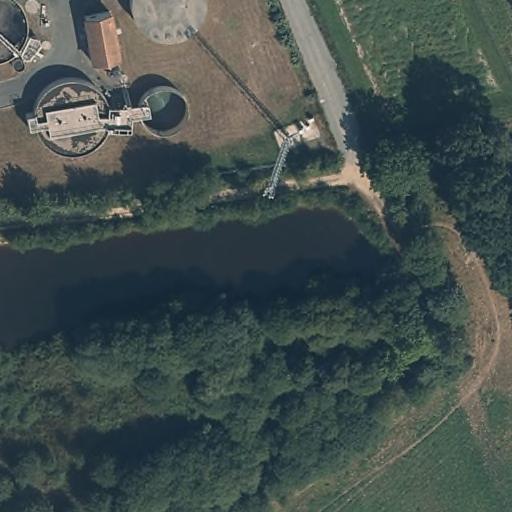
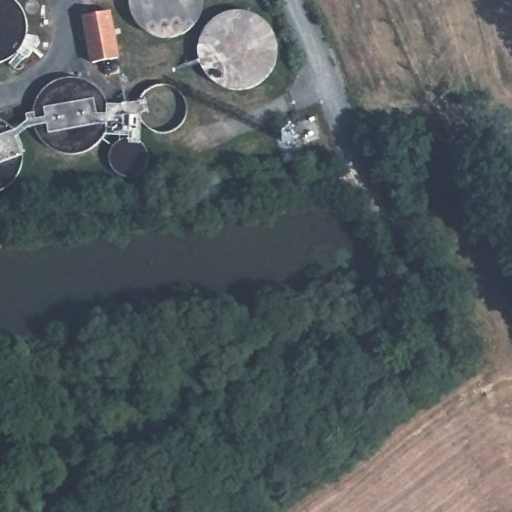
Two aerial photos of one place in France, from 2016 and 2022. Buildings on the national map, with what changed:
unchanged [(117,58),(91,63),(84,18),(111,16),(117,58)]

